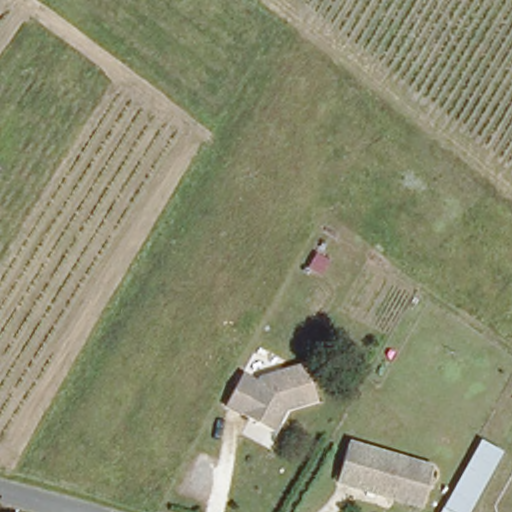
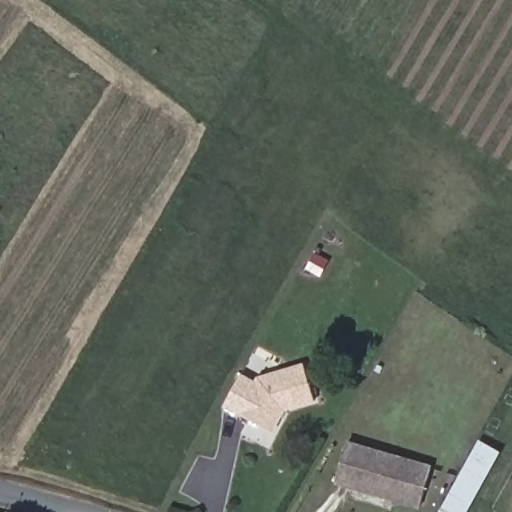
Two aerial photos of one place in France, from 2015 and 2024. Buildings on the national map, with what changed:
unchanged [(287,412),(275,435),(225,410),(244,375),(257,383),(260,377),(308,365),(315,406),(287,412)]
unchanged [(432,470),(420,507),(393,499),(335,480),(342,459),(348,441),(352,442),(414,464),(432,470)]
unchanged [(494,455),(467,512),(440,512),(473,446),(494,455)]

